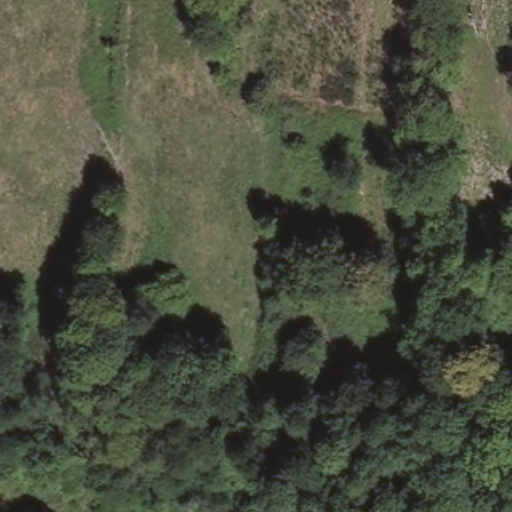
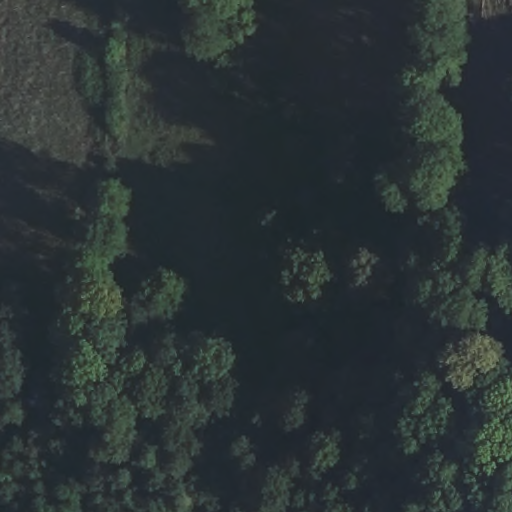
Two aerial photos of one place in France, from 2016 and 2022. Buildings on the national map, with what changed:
[]

